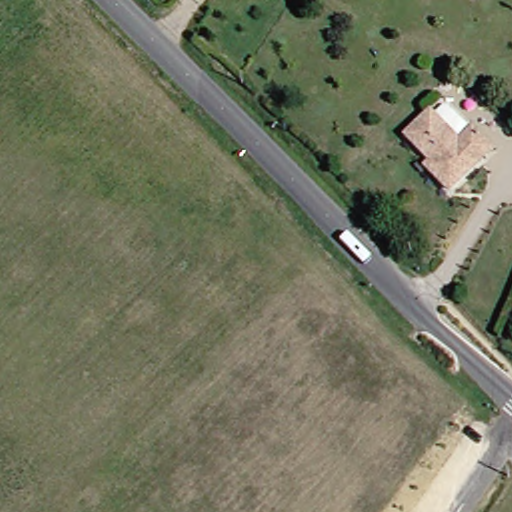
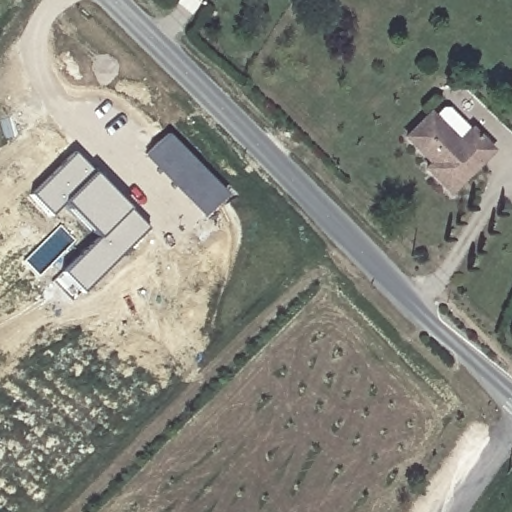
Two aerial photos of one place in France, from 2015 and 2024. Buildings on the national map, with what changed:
unchanged [(436,115),(466,146),(481,132),(499,149),(459,191),(437,169),(443,164),(416,140),(436,115)]
new [(203,217),(143,156),(168,133),(228,194),(203,217)]
new [(91,172),(126,209),(145,229),(80,292),(60,272),(96,238),(62,203),(49,216),(30,194),(73,153),(91,172)]

